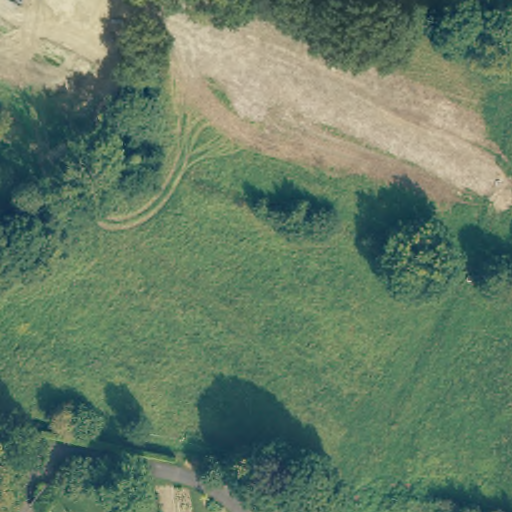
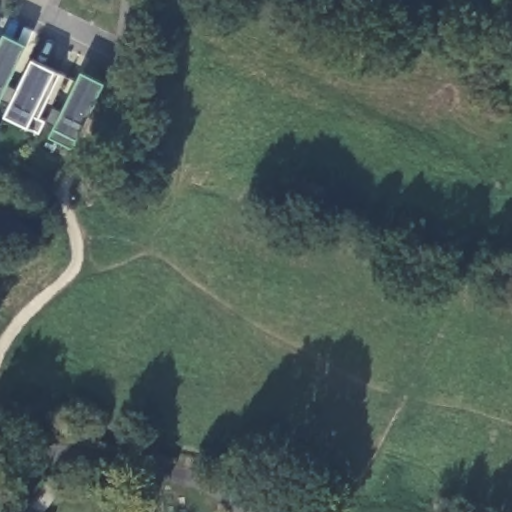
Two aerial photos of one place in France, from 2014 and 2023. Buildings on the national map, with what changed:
new [(4,34),(26,44),(7,82),(18,88),(32,60),(54,71),(58,74),(38,117),(44,120),(52,105),(63,110),(82,71),(104,83),(76,136),(71,146),(50,136),(54,128),(43,123),(39,130),(28,125),(6,115),(12,102),(1,97),(0,100),(0,42),(4,34)]
unchanged [(45,485),(57,495),(43,512),(35,512),(29,506),(45,485)]

